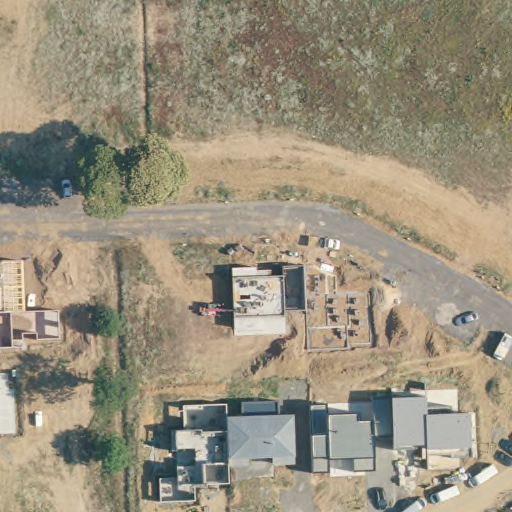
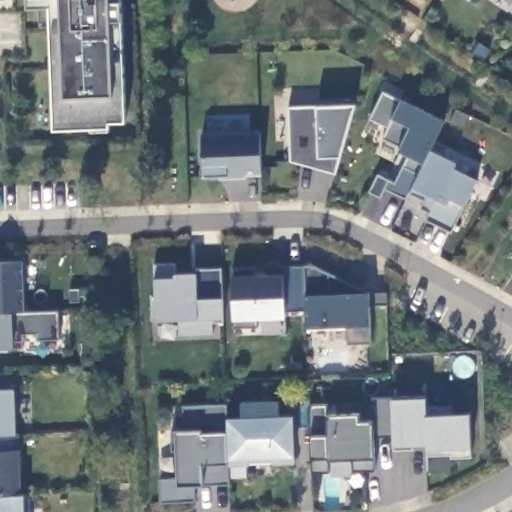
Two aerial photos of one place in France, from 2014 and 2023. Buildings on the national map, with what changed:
new [(110,120),(110,126),(55,127),(52,25),(42,25),(41,5),(29,6),(28,0),(122,0),(126,120),(110,120)]
new [(427,218),(430,211),(421,207),(425,199),(411,192),(407,198),(385,187),(381,196),(370,190),(378,172),(395,181),(403,165),(410,153),(399,149),(401,143),(384,137),(388,126),(370,117),(384,89),(402,98),(445,119),(431,148),(458,161),(456,166),(478,177),(465,204),(452,231),(427,218)]
new [(292,159),(290,106),(318,105),(356,102),(341,155),(336,172),(292,159)]
unchanged [(262,173),(204,175),(201,132),(260,130),(262,173)]
unchanged [(38,332),(24,333),(24,347),(14,347),(0,347),(0,261),(24,260),(25,311),(59,310),(60,338),(39,338),(38,332)]
new [(176,263),(176,272),(197,271),(197,267),(222,267),(223,296),(224,317),(224,322),(214,321),(213,333),(180,334),(180,318),(157,319),(152,318),(152,296),(156,296),(156,276),(155,277),(155,264),(176,263)]
unchanged [(348,343),(347,324),(308,327),(307,310),(286,311),(285,317),(256,318),(258,326),(235,327),(235,319),(233,274),(233,268),(257,267),(257,273),(282,272),(282,266),(313,264),(370,292),(371,324),(371,343),(348,343)]
new [(16,387),(17,432),(20,433),(21,448),(22,492),(25,492),(25,493),(30,493),(30,512),(0,512),(0,373),(9,372),(10,388),(16,387)]
unchanged [(472,456),(454,457),(453,453),(430,454),(429,447),(428,444),(414,445),(413,449),(396,449),(395,446),(395,435),(375,436),(376,458),(376,470),(355,471),(354,458),(331,458),(332,471),(315,472),(314,458),(313,436),(311,406),(327,405),(328,415),(358,413),(359,421),(375,420),(374,398),(392,397),(426,396),(427,409),(451,408),(452,413),(471,413),(472,447),(472,456)]
unchanged [(295,464),(275,464),(272,457),(249,458),(250,465),(230,466),(229,458),(228,417),(243,416),(242,402),(276,401),(277,415),(295,415),(296,456),(295,464)]
unchanged [(228,431),(229,458),(230,466),(230,482),(204,483),(196,483),(196,499),(161,501),(160,478),(179,478),(178,450),(172,450),(172,430),(176,429),(185,429),(184,405),(227,403),(228,417),(228,431)]

